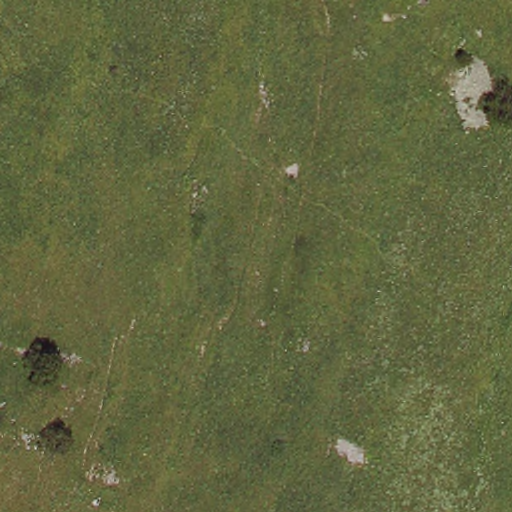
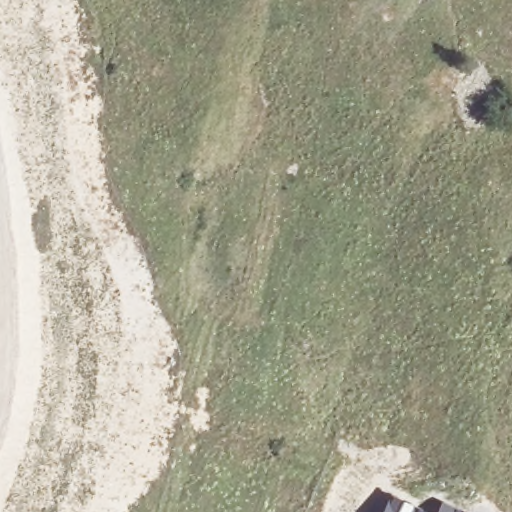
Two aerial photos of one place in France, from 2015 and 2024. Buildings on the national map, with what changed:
new [(388,493),(433,512),(378,512),(388,493)]
new [(441,500),(466,512),(434,512),(441,500)]

